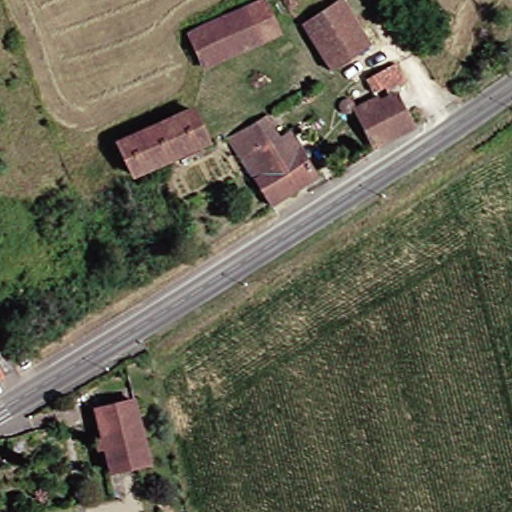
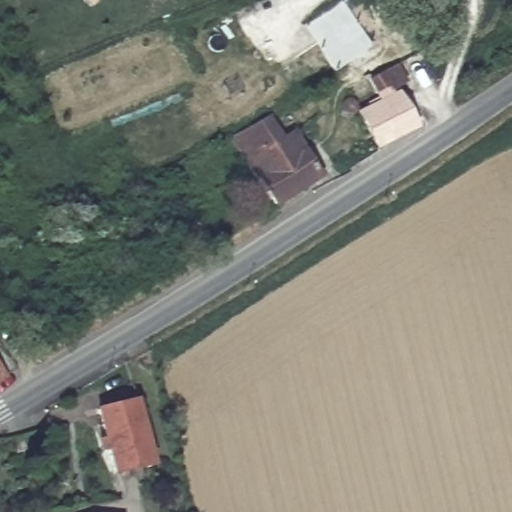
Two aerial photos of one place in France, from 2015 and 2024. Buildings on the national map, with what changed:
unchanged [(368,45),(334,66),(308,21),(339,1),(368,45)]
demolished [(210,73),(194,37),(249,11),(264,49),(210,73)]
unchanged [(399,92),(417,124),(379,146),(360,116),(381,103),(370,81),(398,63),(410,83),(399,92)]
demolished [(124,140),(173,120),(192,112),(205,144),(187,150),(136,171),(124,140)]
unchanged [(236,140),(262,124),(277,145),(291,138),(315,178),(273,204),(236,140)]
unchanged [(9,345),(20,365),(0,378),(0,349),(9,345)]
unchanged [(153,466),(115,476),(99,411),(136,401),(153,466)]

